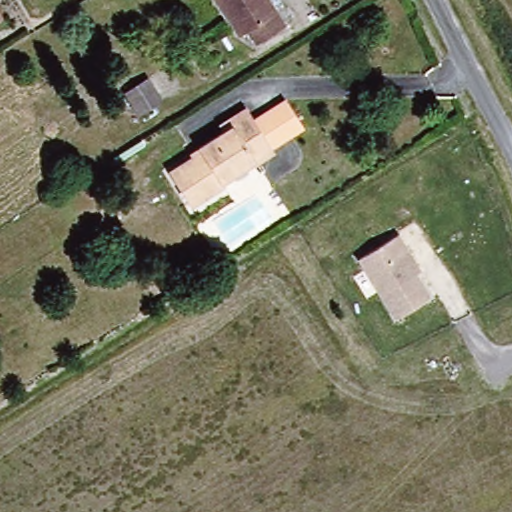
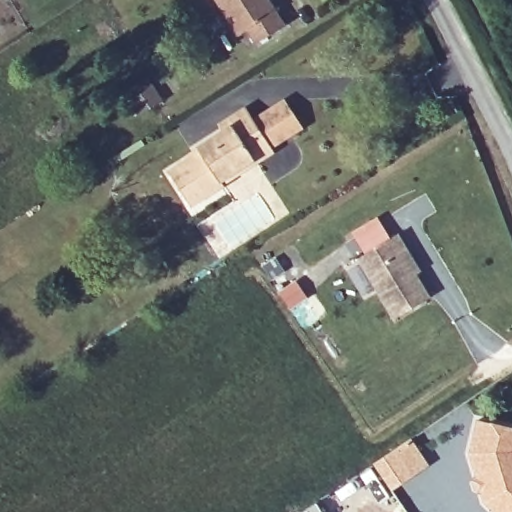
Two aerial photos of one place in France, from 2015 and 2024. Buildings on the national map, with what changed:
unchanged [(256,42),(247,28),(238,33),(230,19),(219,0),(275,0),(288,21),(256,42)]
unchanged [(284,99),(306,131),(272,153),(251,120),(284,99)]
unchanged [(219,184),(224,190),(194,208),(172,171),(201,154),(198,148),(232,128),(227,120),(245,110),(272,153),(219,184)]
unchanged [(407,249),(403,252),(431,298),(397,318),(370,272),(361,258),(398,235),(407,248),(407,249)]
new [(512,428),(512,512),(494,512),(488,507),(468,453),(476,421),(512,428)]
new [(412,438),(431,466),(392,491),(372,464),(412,438)]
new [(317,501),(324,512),(300,512),(317,501)]

